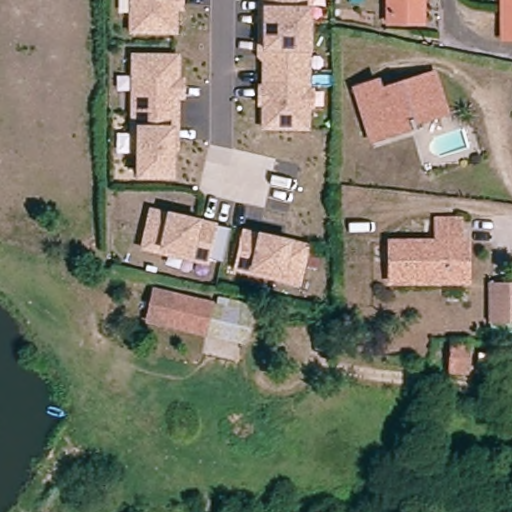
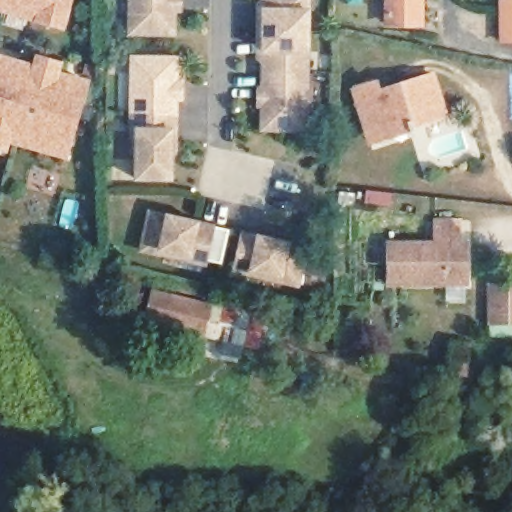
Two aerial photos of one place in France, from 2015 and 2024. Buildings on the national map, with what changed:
new [(0,0),(76,0),(68,30),(0,11),(0,0)]
unchanged [(128,36),(128,0),(184,0),(184,13),(179,14),(179,35),(128,36)]
unchanged [(260,109),(256,109),(256,85),(262,85),(262,62),(255,59),(257,2),(260,0),(311,0),(311,11),(312,55),(312,91),(317,90),(316,113),(310,112),(309,132),(263,130),(260,109)]
unchanged [(423,26),(387,26),(387,0),(423,0),(423,26)]
unchanged [(501,49),(500,0),(512,0),(512,49),(501,49)]
new [(14,145),(11,156),(0,152),(0,53),(34,64),(36,55),(65,64),(64,72),(91,81),(70,160),(14,145)]
unchanged [(135,181),(136,155),(129,155),(131,55),(180,56),(180,80),(185,80),(185,103),(182,104),(180,156),(176,155),(174,182),(135,181)]
unchanged [(368,142),(367,136),(355,85),(378,80),(379,90),(434,78),(444,119),(411,126),(412,132),(368,142)]
unchanged [(138,252),(146,206),(219,224),(218,226),(230,229),(224,263),(210,260),(207,268),(138,252)]
unchanged [(462,239),(469,239),(470,280),(393,280),(393,240),(439,239),(438,216),(462,216),(462,239)]
unchanged [(233,273),(242,230),(308,244),(302,288),(233,273)]
unchanged [(491,326),(491,306),(491,287),(509,287),(512,287),(512,326),(491,326)]
unchanged [(251,319),(242,351),(143,325),(153,293),(251,319)]
unchanged [(466,343),(464,365),(449,365),(450,342),(466,343)]

